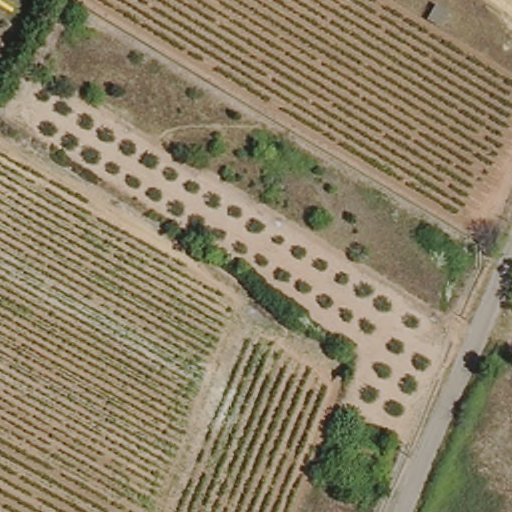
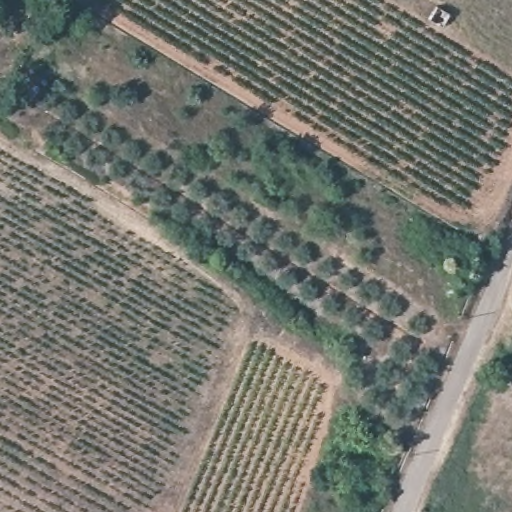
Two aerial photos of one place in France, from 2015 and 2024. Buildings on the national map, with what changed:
unchanged [(451,13),(440,27),(423,15),(431,1),(451,13)]

